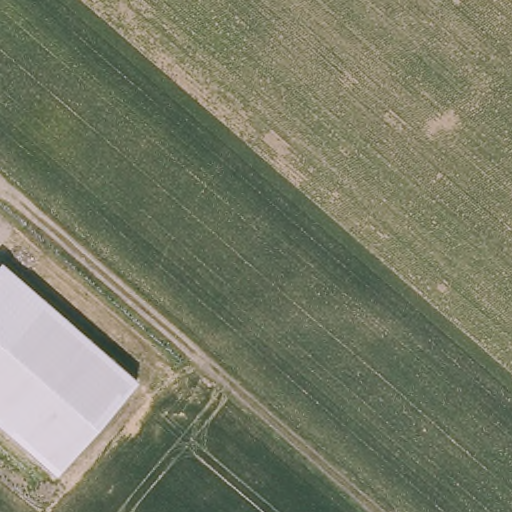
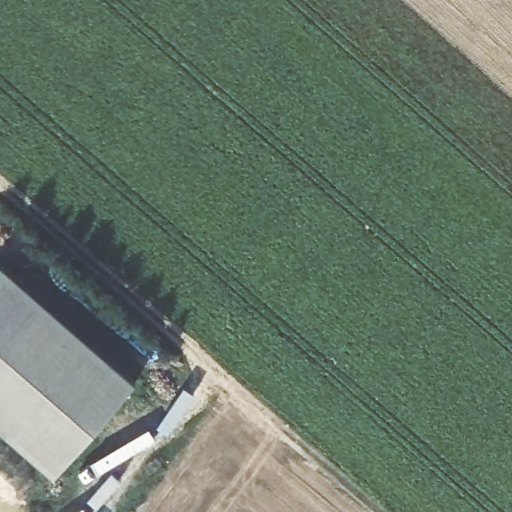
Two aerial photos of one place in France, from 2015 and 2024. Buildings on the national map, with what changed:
unchanged [(0,427),(0,264),(135,381),(54,473),(0,427)]

